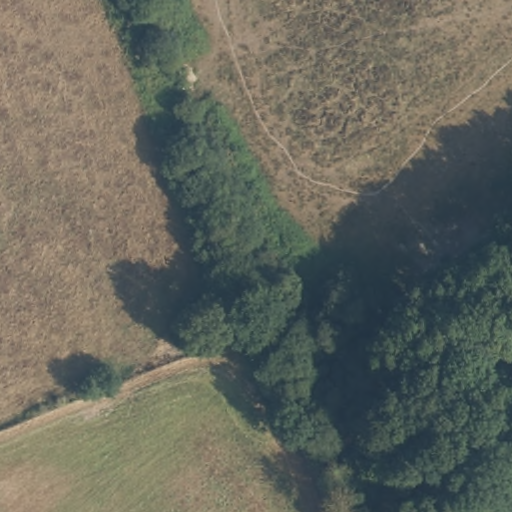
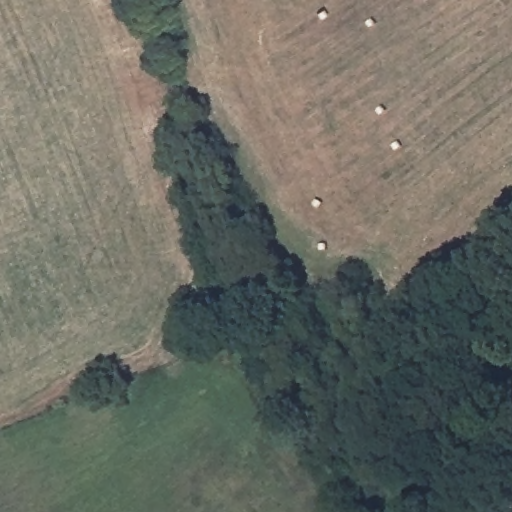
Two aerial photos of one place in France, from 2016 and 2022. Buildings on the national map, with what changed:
[]

